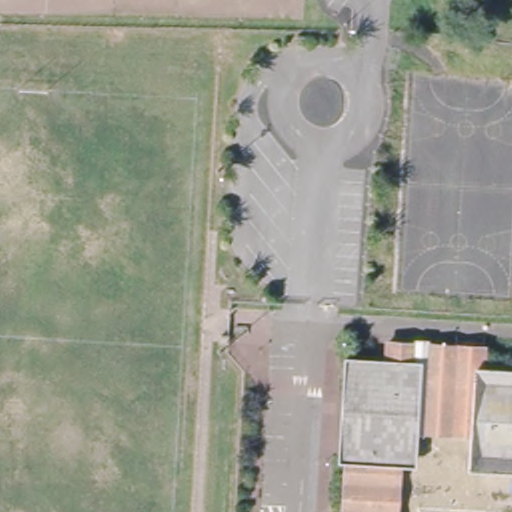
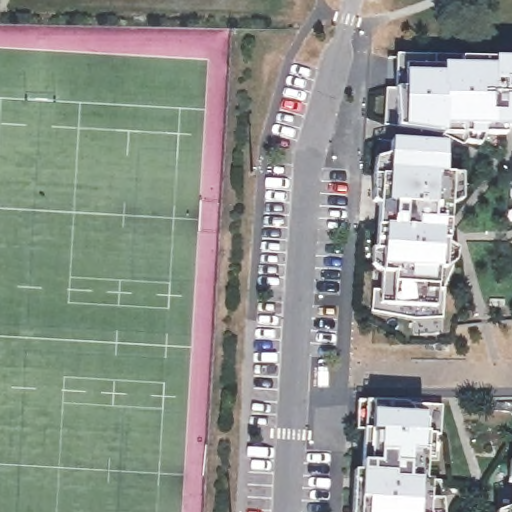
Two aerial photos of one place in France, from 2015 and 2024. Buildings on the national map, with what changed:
new [(461,56),(461,60),(494,59),(512,59),(512,128),(507,128),(506,136),(485,135),(481,145),(466,143),(465,134),(444,134),(405,127),(395,127),(390,126),(386,125),(388,89),(391,89),(397,89),(397,54),(461,56)]
new [(418,320),(371,310),(372,289),(382,289),(382,273),(373,264),(374,247),(377,247),(381,204),(375,202),(374,174),(377,159),(390,156),(391,141),(445,144),(445,173),(463,174),(463,202),(451,206),(449,238),(447,267),(439,269),(437,288),(445,289),(443,317),(418,320)]
demolished [(347,418),(350,363),(385,364),(387,340),(485,346),(484,372),(512,374),(512,460),(477,459),(479,428),(409,425),(408,456),(395,455),(392,512),(346,512),(351,418),(347,418)]
new [(428,343),(450,344),(449,348),(449,354),(427,352),(427,346),(428,343)]
new [(508,399),(512,399),(512,409),(492,407),(494,401),(508,399)]
new [(363,473),(363,464),(366,429),(356,429),(358,402),(366,402),(374,402),(405,402),(444,405),(441,435),(437,435),(429,433),(425,482),(431,482),(430,499),(443,500),(443,512),(353,512),(354,474),(363,473)]
new [(511,460),(512,460),(512,483),(509,483),(511,460)]
new [(512,510),(512,512),(501,512),(508,509),(512,510)]

